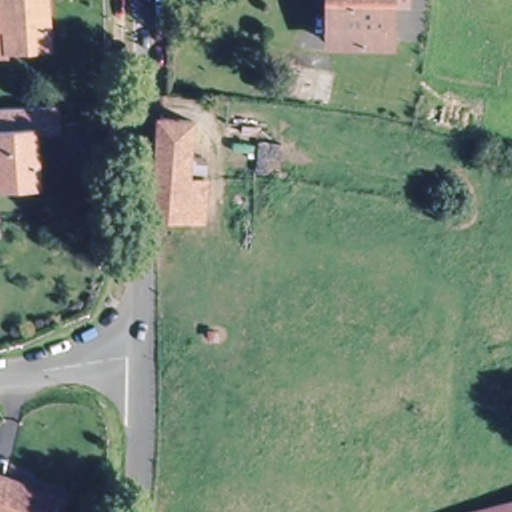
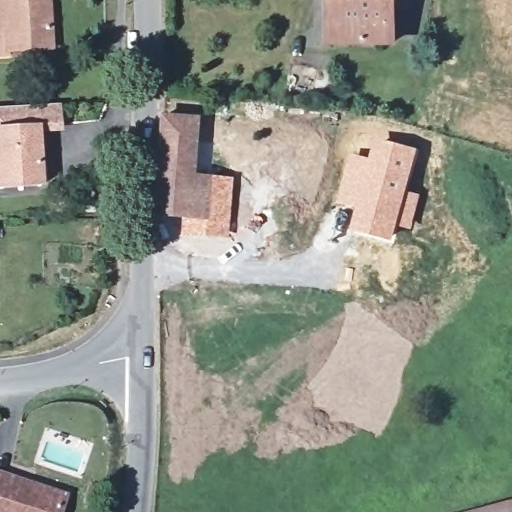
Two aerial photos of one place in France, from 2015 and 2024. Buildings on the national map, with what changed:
unchanged [(50,48),(11,50),(11,55),(0,56),(0,0),(47,0),(50,48)]
unchanged [(388,43),(338,43),(328,43),(328,0),(388,0),(388,43)]
unchanged [(288,64),(333,72),(327,102),(282,95),(288,64)]
unchanged [(0,189),(0,108),(7,107),(58,104),(60,130),(37,131),(40,182),(40,187),(0,189)]
unchanged [(185,180),(202,181),(200,218),(151,215),(152,179),(156,118),(190,121),(185,180)]
new [(350,152),(369,157),(376,135),(419,148),(409,190),(421,194),(412,230),(398,227),(393,242),(350,230),(355,208),(336,202),(350,152)]
unchanged [(7,477),(32,485),(64,496),(66,496),(60,512),(0,512),(0,475),(7,477)]
unchanged [(512,512),(471,512),(512,502),(512,512)]

